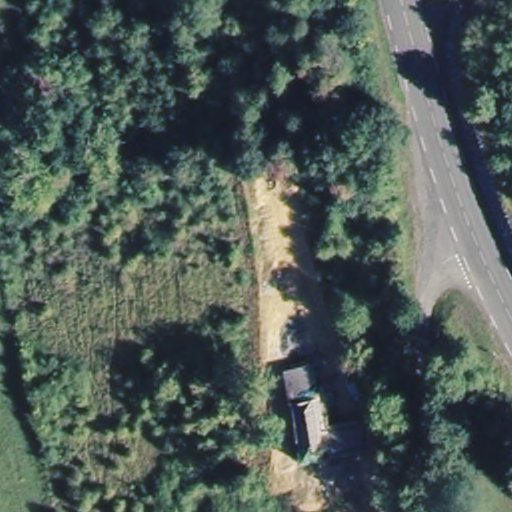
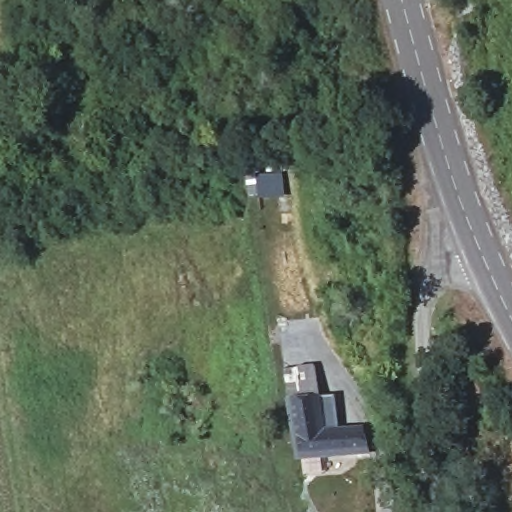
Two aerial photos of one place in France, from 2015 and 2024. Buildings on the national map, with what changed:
unchanged [(289,400),(285,366),(313,364),(321,427),(363,425),(365,450),(298,453),(289,400)]

